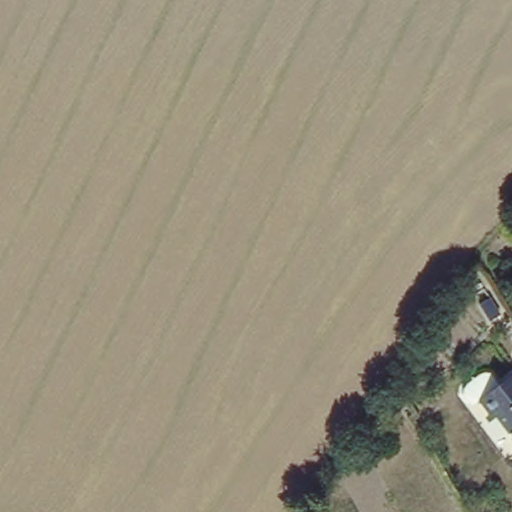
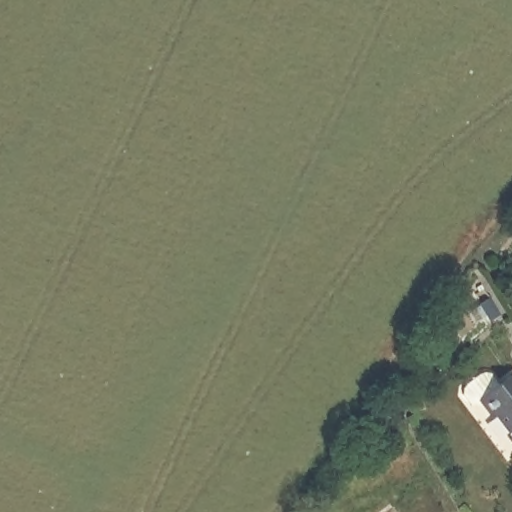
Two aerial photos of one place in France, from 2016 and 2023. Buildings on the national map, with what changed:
unchanged [(512,441),(479,397),(511,378),(512,379),(512,441)]

